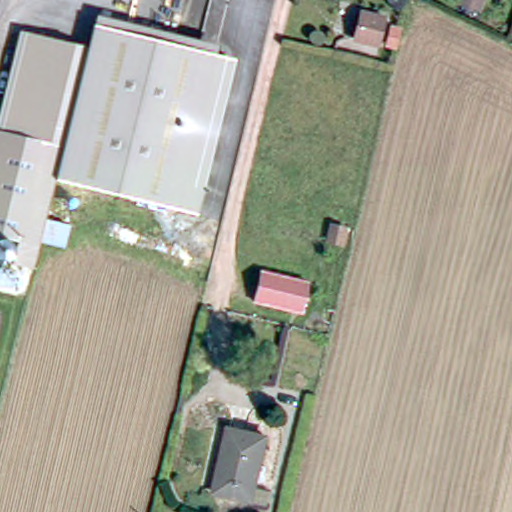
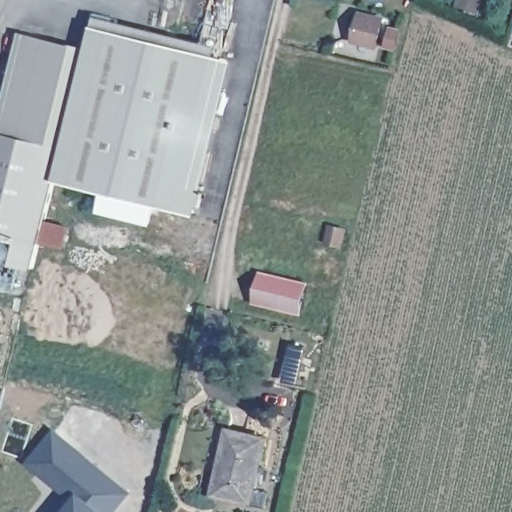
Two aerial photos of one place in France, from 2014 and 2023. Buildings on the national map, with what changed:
unchanged [(381,19),(376,44),(355,39),(360,14),(381,19)]
unchanged [(87,33),(133,44),(95,194),(50,184),(80,58),(87,33)]
unchanged [(34,244),(27,273),(0,266),(0,112),(17,43),(80,58),(50,184),(47,192),(40,224),(65,230),(60,250),(34,244)]
unchanged [(95,194),(133,44),(177,54),(140,205),(95,194)]
unchanged [(209,63),(172,212),(140,205),(177,54),(209,63)]
unchanged [(345,233),(341,250),(325,247),(330,229),(345,233)]
unchanged [(305,283),(299,314),(252,302),(259,272),(305,283)]
unchanged [(16,297),(3,294),(7,275),(20,279),(16,297)]
new [(295,344),(310,348),(302,379),(300,385),(287,383),(288,376),(295,344)]
new [(66,495),(27,463),(55,428),(133,491),(112,512),(51,512),(66,495)]
unchanged [(267,437),(251,501),(215,492),(230,428),(267,437)]

